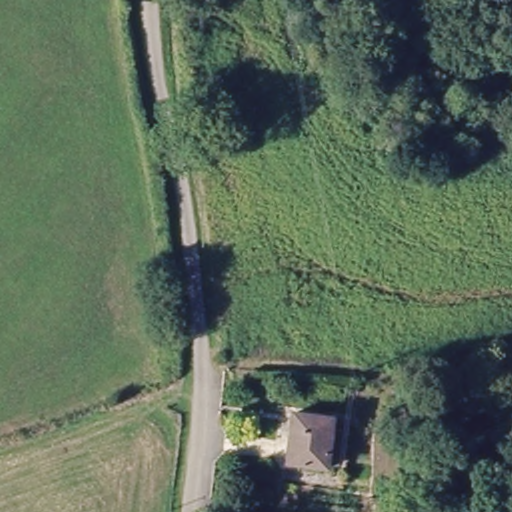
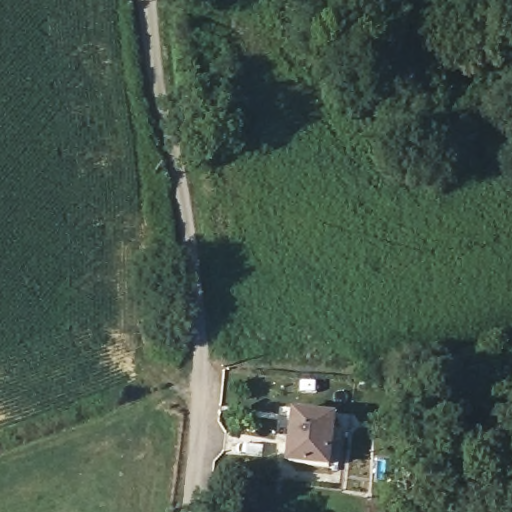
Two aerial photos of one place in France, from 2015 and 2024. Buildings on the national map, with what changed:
unchanged [(340,467),(296,467),(295,423),(340,420),(340,467)]
unchanged [(232,512),(233,487),(262,488),(259,512),(232,512)]

